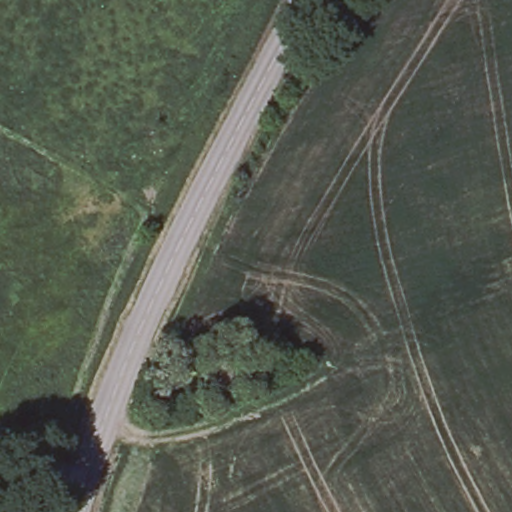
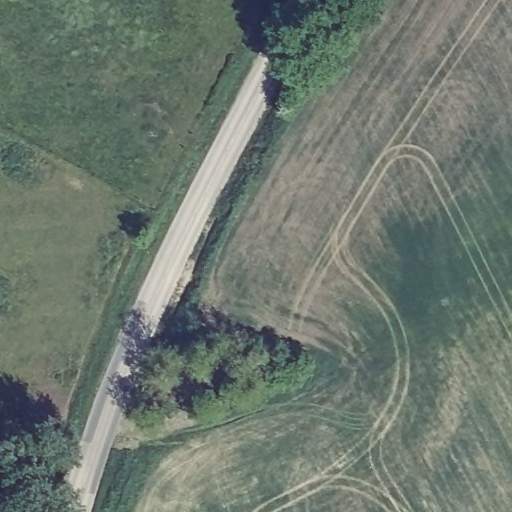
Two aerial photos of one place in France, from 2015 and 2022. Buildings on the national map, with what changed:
[]

